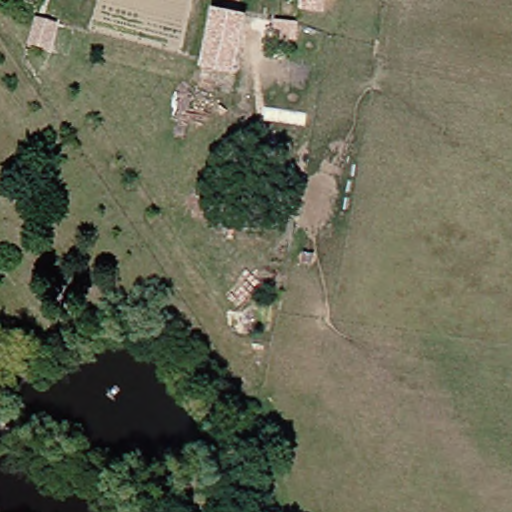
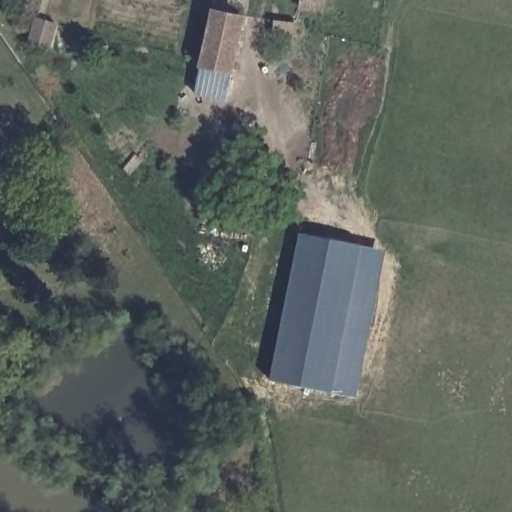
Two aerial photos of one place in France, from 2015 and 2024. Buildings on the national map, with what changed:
unchanged [(310,15),(290,12),(292,0),(312,0),(310,15)]
unchanged [(238,13),(229,67),(201,62),(211,9),(238,13)]
unchanged [(281,26),(279,44),(263,42),(266,24),(281,26)]
new [(299,232),(384,249),(355,395),(270,378),(299,232)]

